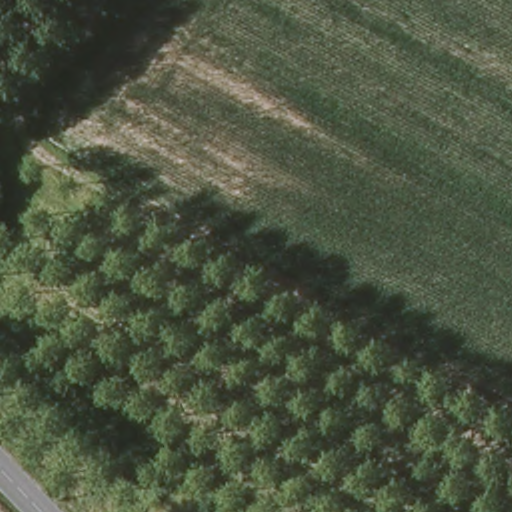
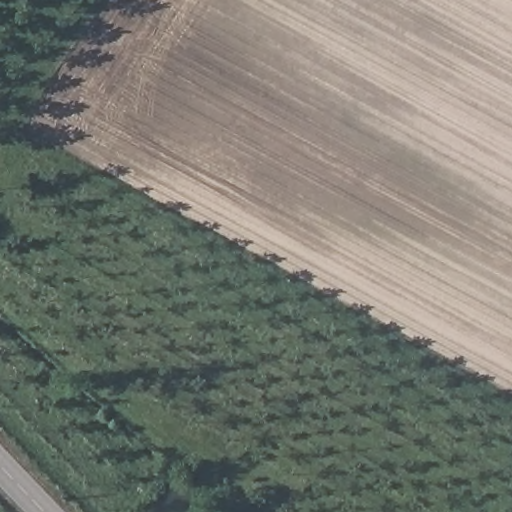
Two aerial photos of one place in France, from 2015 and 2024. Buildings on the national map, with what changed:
[]

